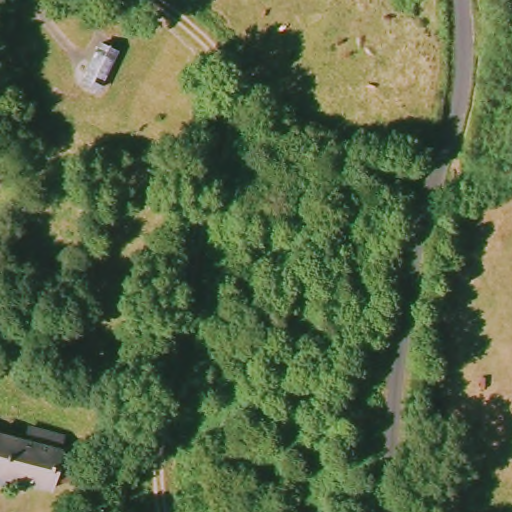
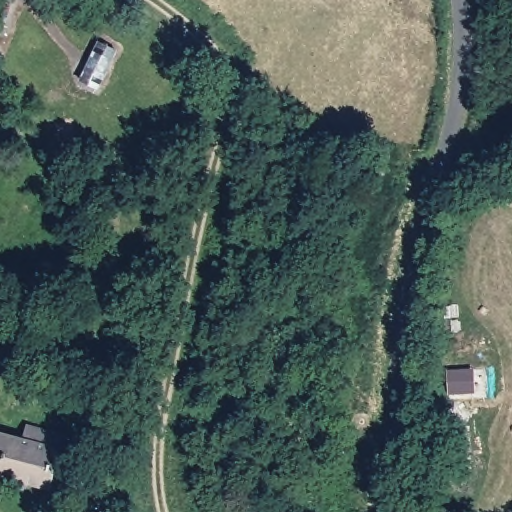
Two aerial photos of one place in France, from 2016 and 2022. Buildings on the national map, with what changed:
unchanged [(116,51),(97,89),(82,81),(102,44),(116,51)]
unchanged [(50,476),(47,486),(0,475),(0,432),(22,438),(26,428),(60,437),(57,446),(85,452),(75,483),(50,476)]

